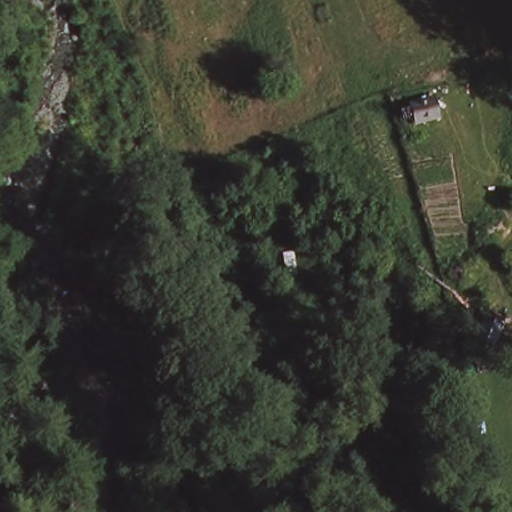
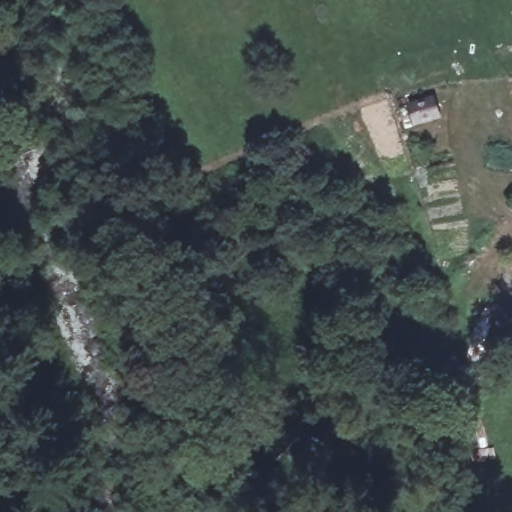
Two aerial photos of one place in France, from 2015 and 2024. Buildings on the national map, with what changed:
unchanged [(439,119),(411,128),(405,108),(433,99),(439,119)]
unchanged [(296,250),(301,276),(286,280),(280,255),(296,250)]

